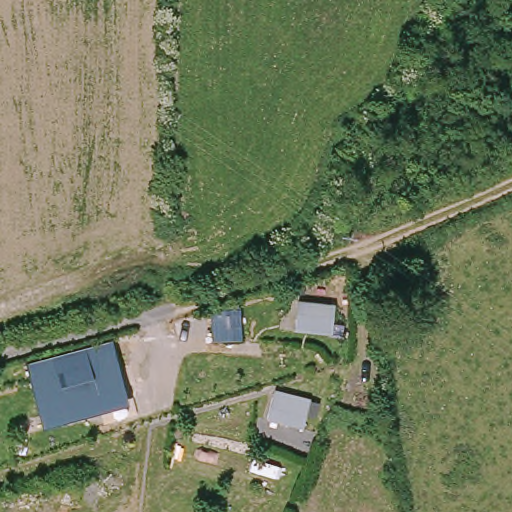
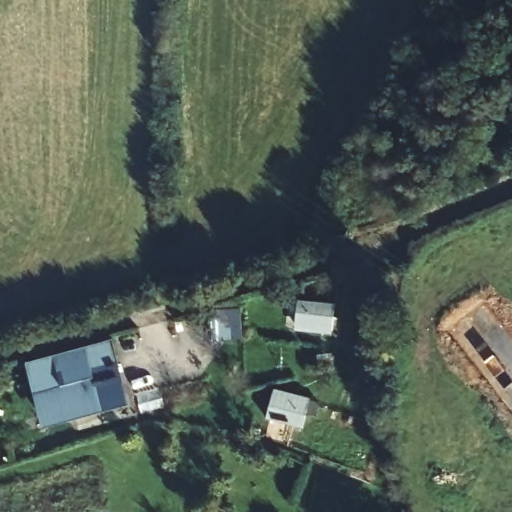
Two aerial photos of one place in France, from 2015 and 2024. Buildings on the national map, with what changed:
unchanged [(343,336),(333,334),(296,330),(298,301),(335,304),(334,322),(345,325),(343,336)]
unchanged [(242,341),(212,341),(212,311),(241,309),(242,341)]
unchanged [(130,406),(45,430),(25,363),(114,341),(130,406)]
unchanged [(316,417),(307,416),(304,427),(267,418),(275,390),(310,400),(319,402),(316,417)]

